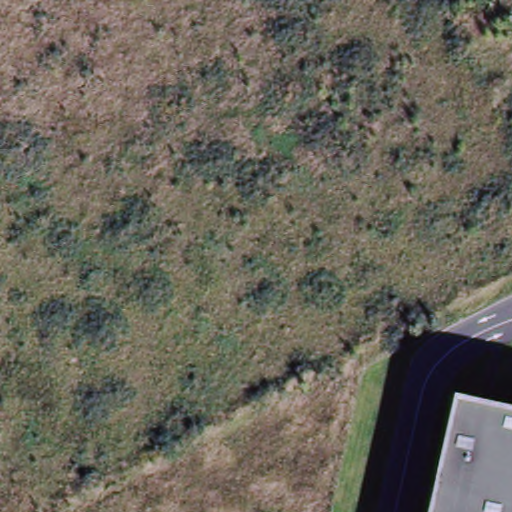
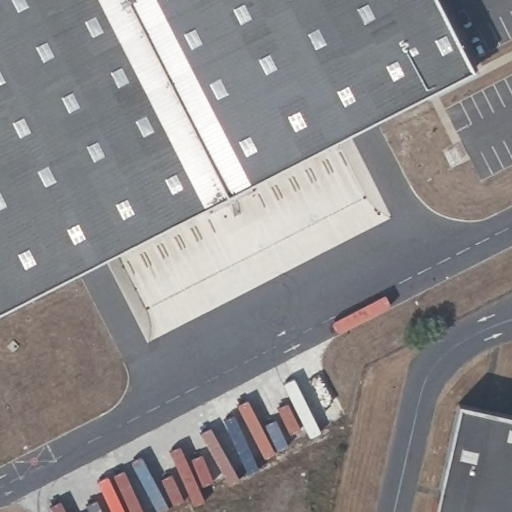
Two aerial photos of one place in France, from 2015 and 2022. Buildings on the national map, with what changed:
new [(0,311),(0,0),(432,0),(467,70),(0,311)]
unchanged [(512,512),(434,512),(458,403),(512,415),(512,512)]

